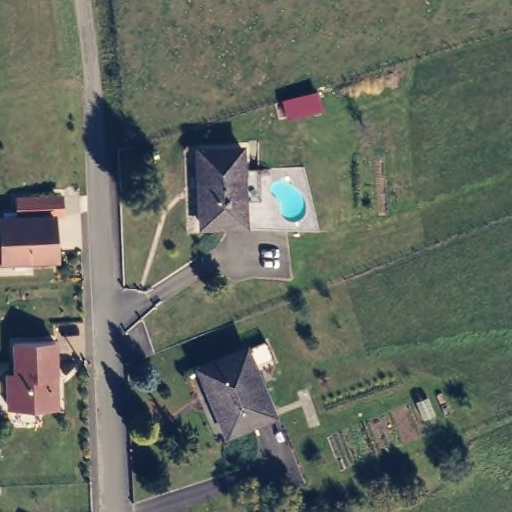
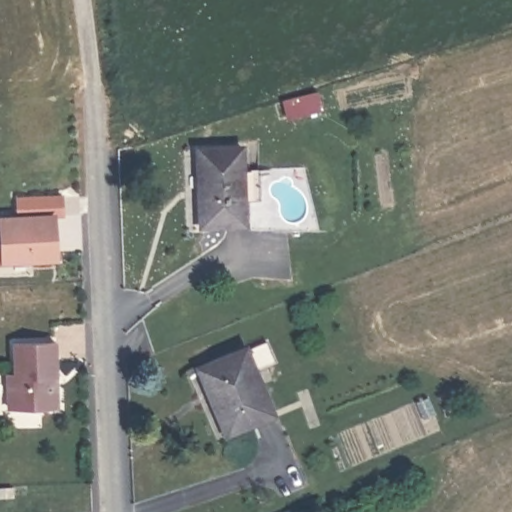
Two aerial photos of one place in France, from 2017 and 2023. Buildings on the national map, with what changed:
unchanged [(243,144),(246,222),(202,222),(199,143),(243,144)]
unchanged [(50,255),(0,258),(0,214),(48,211),(50,255)]
unchanged [(50,414),(10,415),(9,376),(17,375),(16,344),(59,342),(59,377),(60,415),(50,414)]
unchanged [(252,357),(277,422),(231,438),(207,373),(252,357)]

